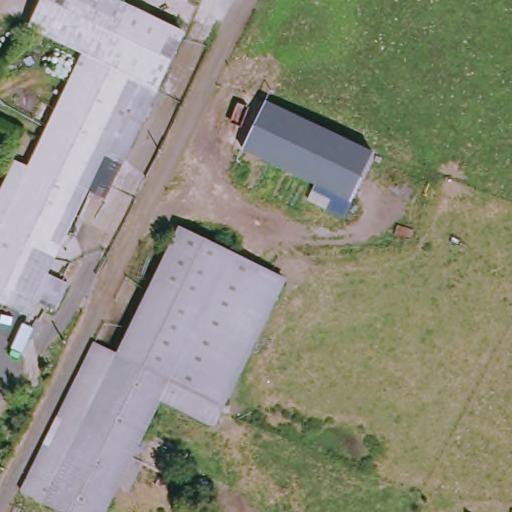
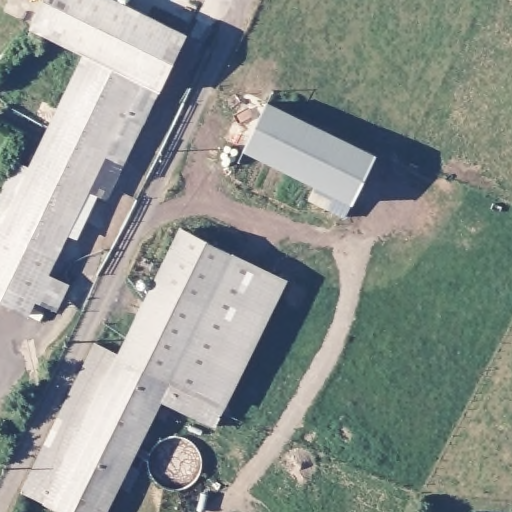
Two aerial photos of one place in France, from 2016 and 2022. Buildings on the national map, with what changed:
unchanged [(102,203),(86,194),(45,273),(65,283),(58,302),(48,305),(39,322),(20,314),(0,303),(0,182),(11,159),(24,165),(77,54),(25,29),(39,0),(115,0),(184,32),(156,90),(102,203)]
unchanged [(266,101),(374,153),(351,202),(241,151),(266,101)]
unchanged [(220,405),(211,428),(156,402),(129,455),(139,463),(127,490),(114,486),(103,512),(57,512),(40,503),(18,491),(89,341),(114,355),(176,225),(286,281),(220,405)]

